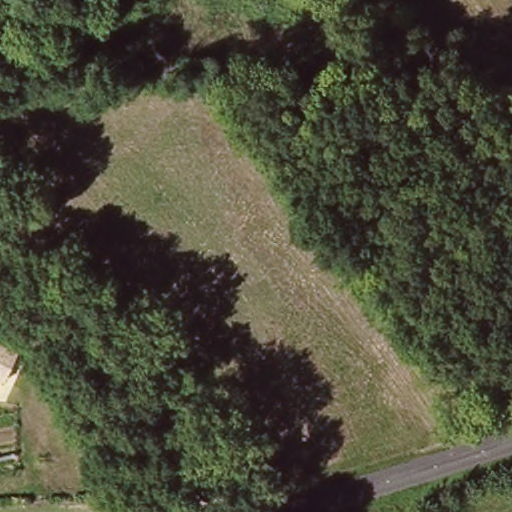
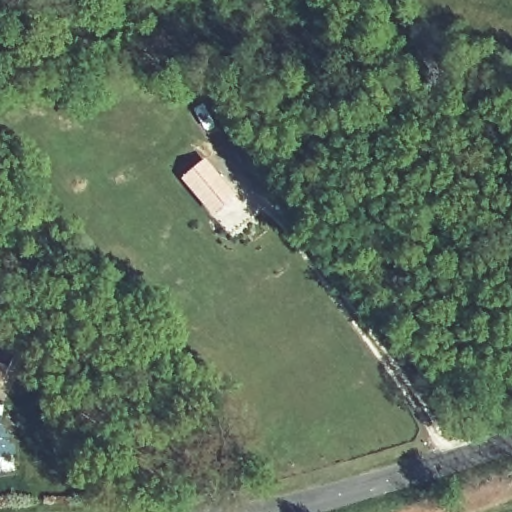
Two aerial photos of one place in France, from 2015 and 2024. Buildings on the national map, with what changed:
new [(239,195),(215,216),(184,178),(208,158),(239,195)]
unchanged [(5,380),(0,378),(0,343),(18,352),(5,380)]

